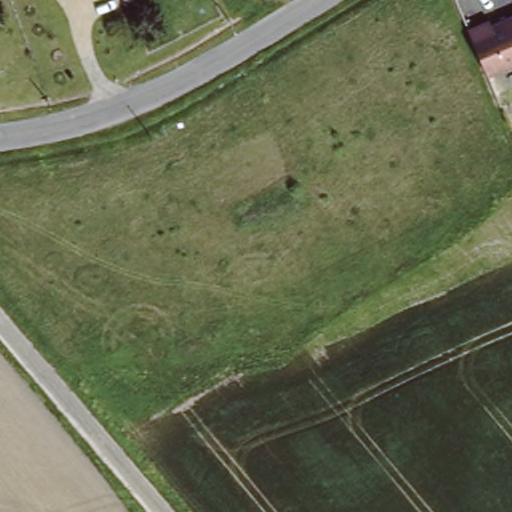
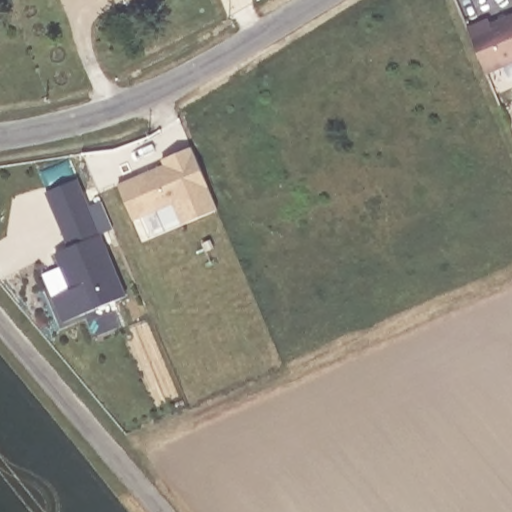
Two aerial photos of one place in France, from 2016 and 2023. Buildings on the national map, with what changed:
unchanged [(490,24),(512,14),(512,60),(485,71),(475,48),(467,28),(487,19),(490,24)]
new [(165,165),(162,159),(192,147),(218,210),(183,225),(174,204),(133,222),(118,184),(165,165)]
new [(78,179),(128,296),(64,324),(52,297),(69,289),(54,254),(68,247),(47,193),(78,179)]

